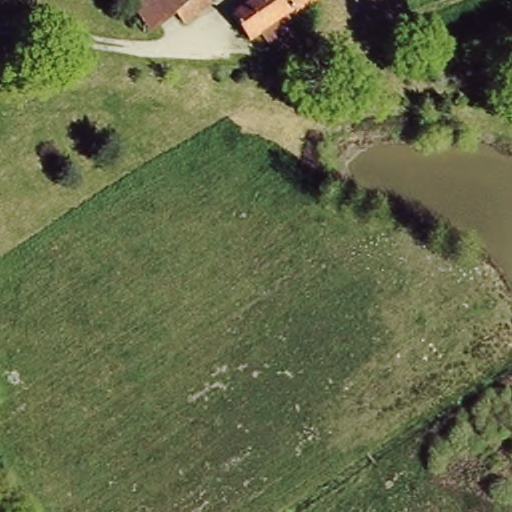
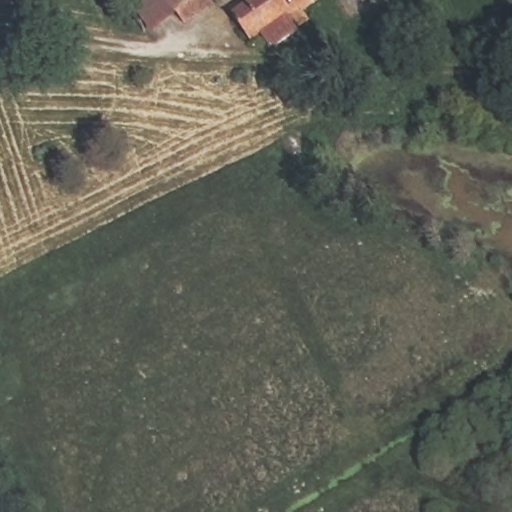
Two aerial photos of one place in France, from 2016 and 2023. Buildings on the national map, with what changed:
unchanged [(183,19),(178,6),(155,31),(133,0),(212,0),(183,19)]
unchanged [(269,47),(234,11),(249,0),(318,0),(295,20),(304,29),(269,47)]

